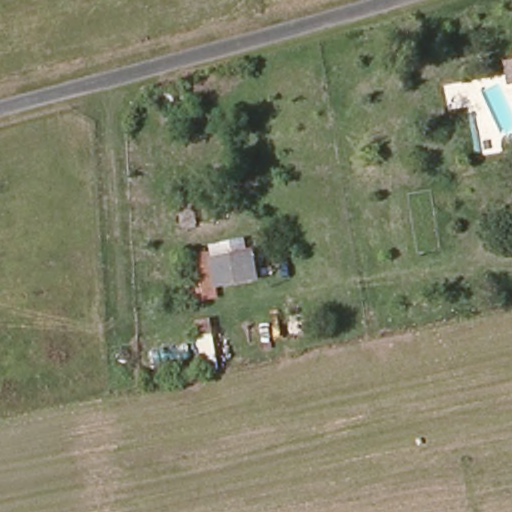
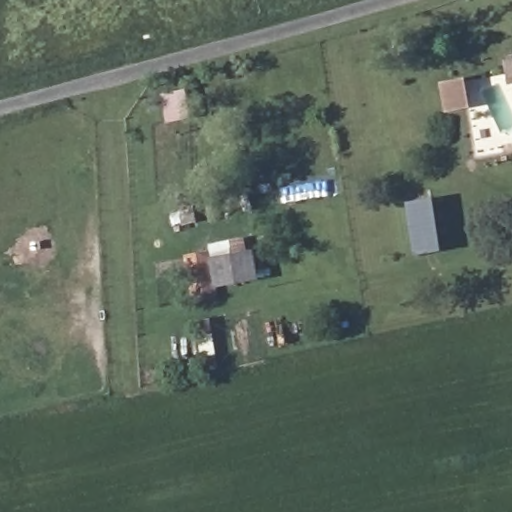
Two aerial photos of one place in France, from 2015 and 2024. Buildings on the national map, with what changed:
new [(443,252),(416,257),(408,204),(436,200),(443,252)]
unchanged [(193,293),(186,252),(248,239),(261,282),(193,293)]

